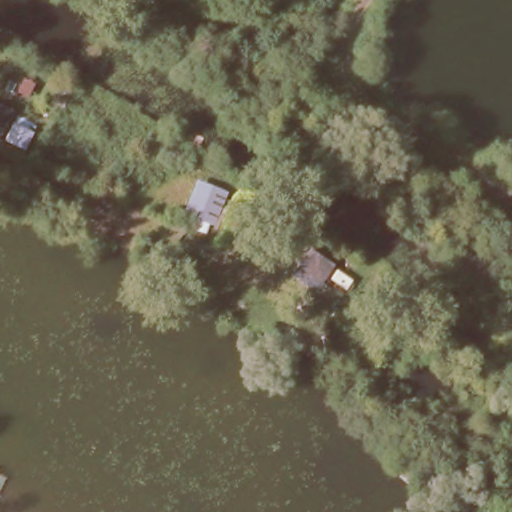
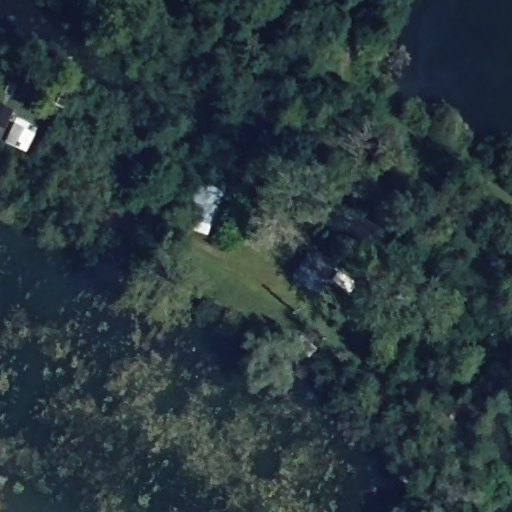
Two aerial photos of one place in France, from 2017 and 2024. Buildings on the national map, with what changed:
unchanged [(17,115),(10,135),(0,131),(0,107),(17,115)]
unchanged [(236,193),(215,240),(177,224),(199,179),(236,193)]
unchanged [(337,270),(325,293),(297,276),(310,255),(337,270)]

